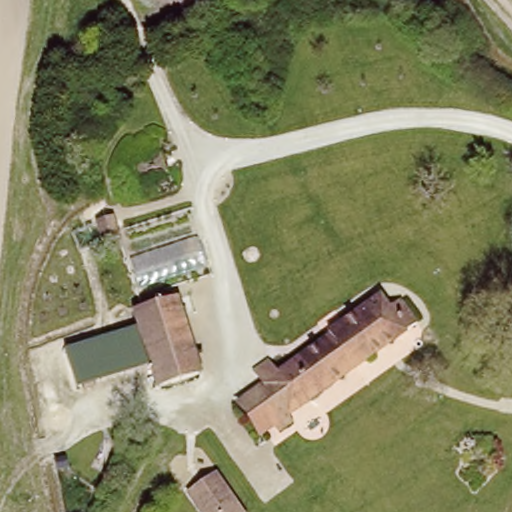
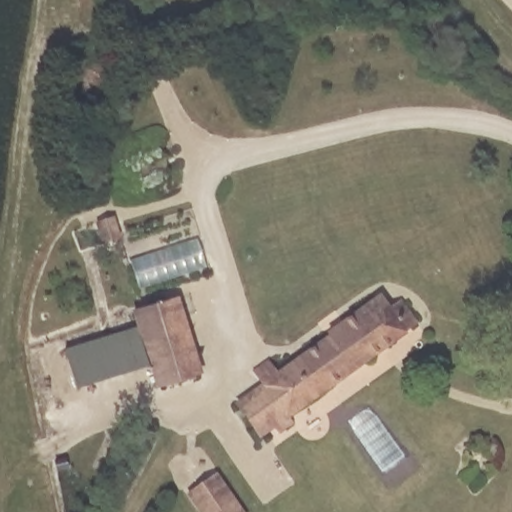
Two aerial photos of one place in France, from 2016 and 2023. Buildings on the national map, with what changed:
unchanged [(117,210),(122,231),(107,235),(102,214),(117,210)]
unchanged [(181,298),(205,375),(159,388),(152,366),(141,326),(136,310),(181,298)]
unchanged [(247,375),(261,365),(270,378),(280,370),(322,340),(320,337),(372,301),(388,324),(400,314),(412,329),(307,406),(283,424),(260,391),(247,375)]
unchanged [(77,388),(65,349),(141,326),(152,366),(77,388)]
unchanged [(432,342),(449,363),(438,372),(421,350),(432,342)]
unchanged [(283,424),(287,429),(274,438),(270,433),(257,443),(233,411),(260,391),(283,424)]
unchanged [(197,512),(185,494),(217,470),(244,512),(197,512)]

